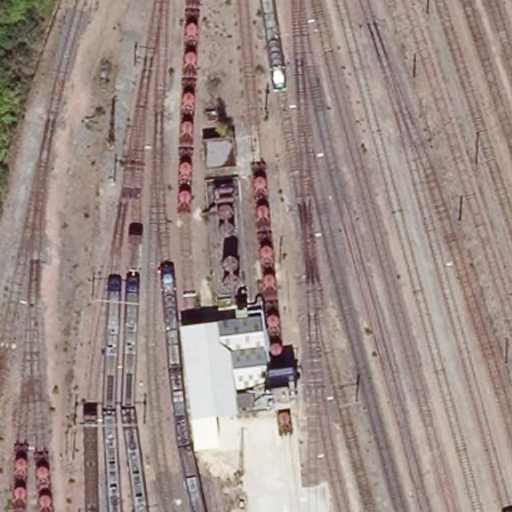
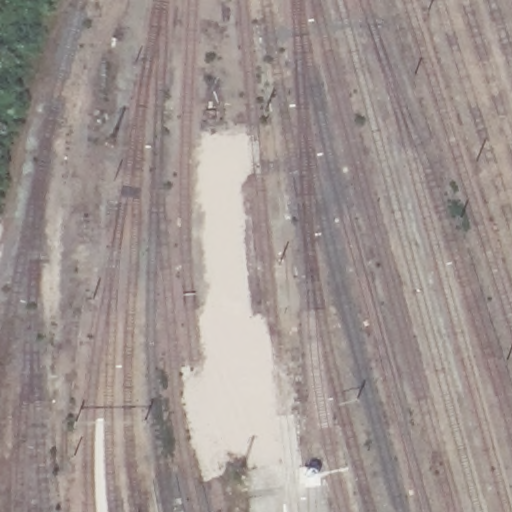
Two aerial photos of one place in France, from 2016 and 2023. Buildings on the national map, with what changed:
demolished [(234,134),(236,165),(203,170),(201,138),(234,134)]
demolished [(259,314),(266,366),(294,363),(298,408),(264,413),(189,422),(179,326),(259,314)]

